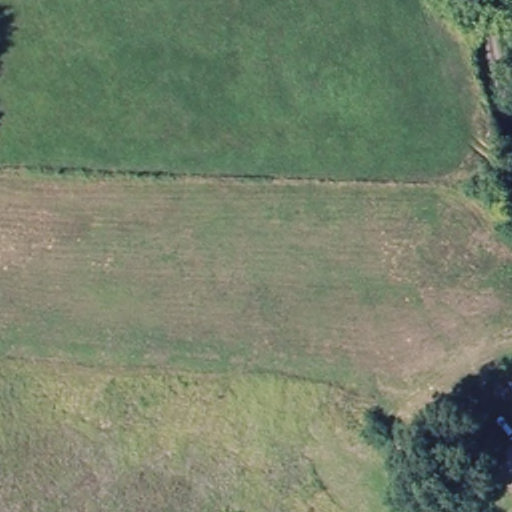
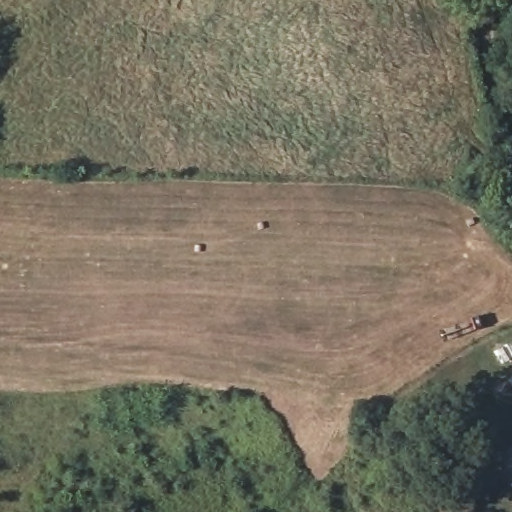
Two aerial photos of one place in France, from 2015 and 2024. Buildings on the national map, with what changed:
[]

